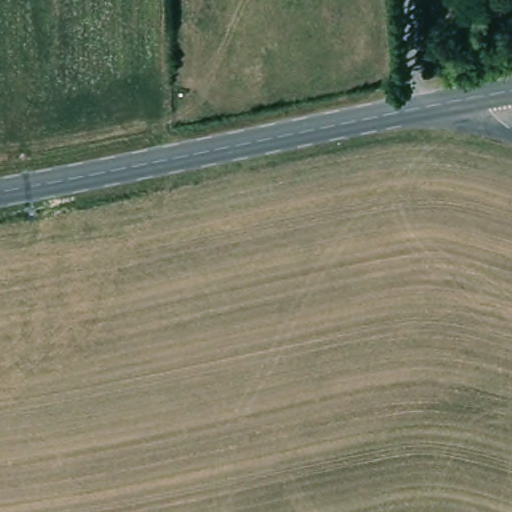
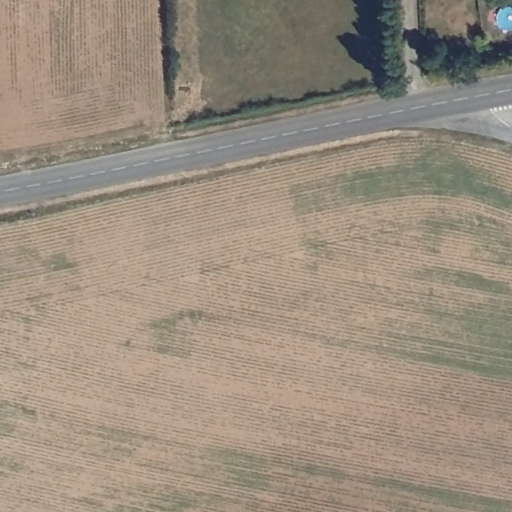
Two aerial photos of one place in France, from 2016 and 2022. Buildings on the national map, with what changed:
[]

